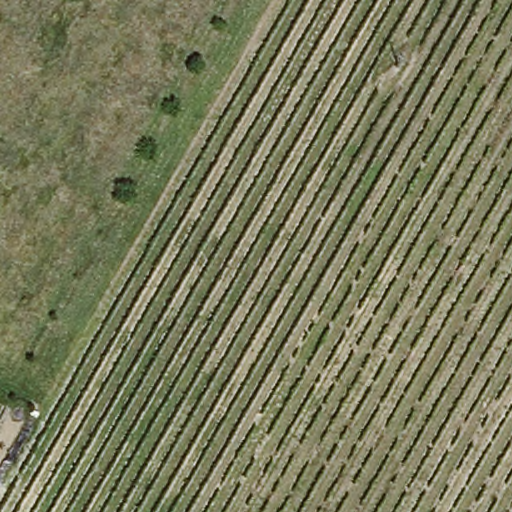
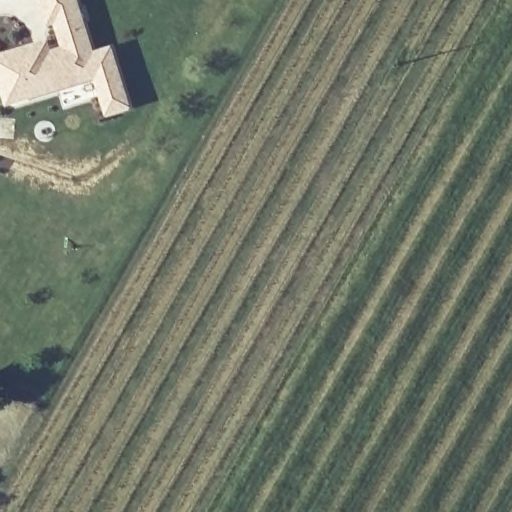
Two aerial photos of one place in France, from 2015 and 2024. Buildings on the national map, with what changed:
new [(0,86),(0,55),(48,40),(51,50),(62,45),(55,23),(48,25),(40,0),(79,0),(95,50),(113,45),(131,106),(107,114),(96,77),(6,105),(0,86)]

